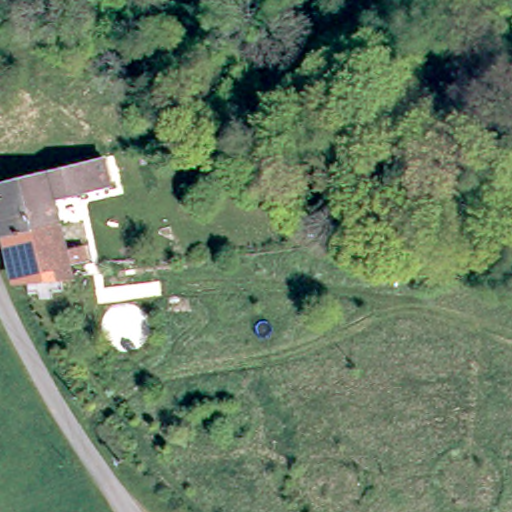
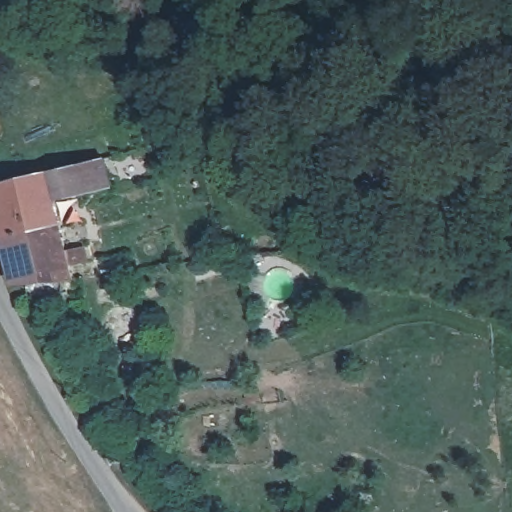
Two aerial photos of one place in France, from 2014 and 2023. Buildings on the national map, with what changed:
unchanged [(0,178),(108,150),(115,181),(60,195),(73,244),(89,240),(93,255),(75,260),(77,268),(23,276),(0,184),(0,178)]

